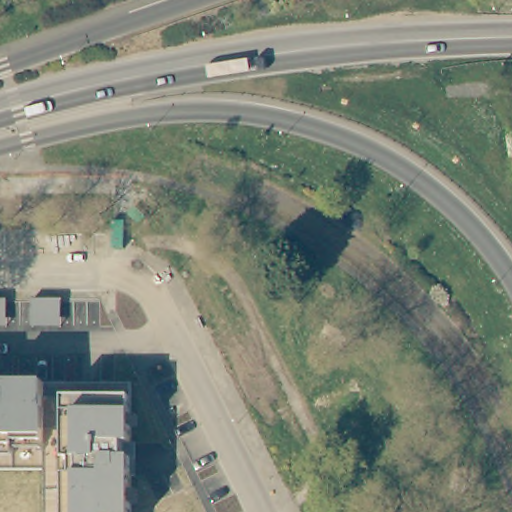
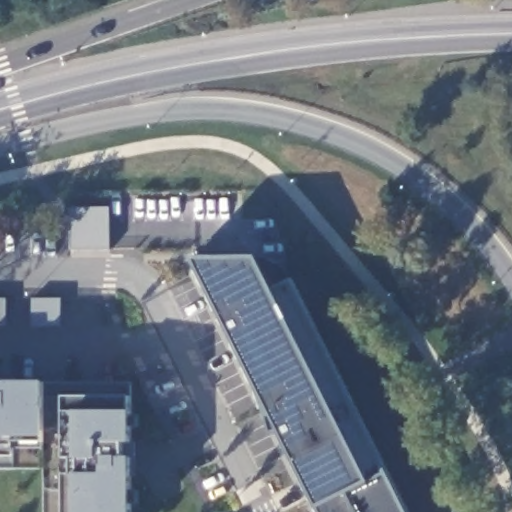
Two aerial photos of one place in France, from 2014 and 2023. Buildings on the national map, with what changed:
new [(110,251),(71,251),(70,208),(109,208),(110,251)]
new [(196,261),(257,260),(275,292),(295,282),(407,512),(321,512),(320,510),(196,261)]
unchanged [(0,468),(0,383),(44,384),(131,384),(131,397),(131,413),(132,444),(123,444),(123,457),(131,457),(131,512),(46,512),(46,468),(0,468)]

